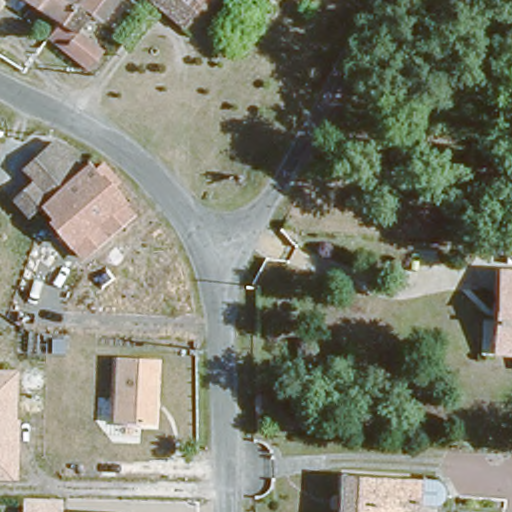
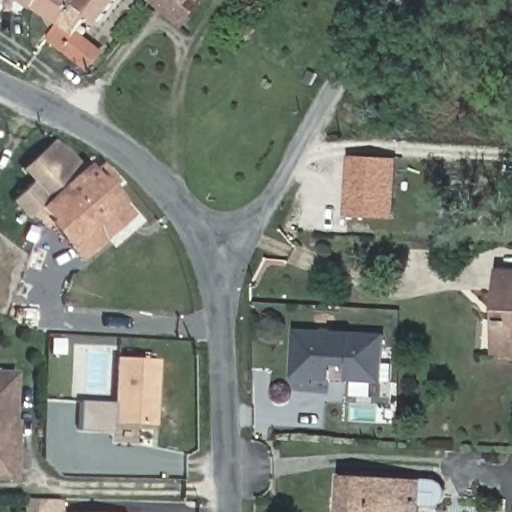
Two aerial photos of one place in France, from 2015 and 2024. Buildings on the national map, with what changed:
unchanged [(0,3),(0,0),(2,0),(0,3)]
unchanged [(37,0),(76,0),(78,1),(67,19),(66,21),(57,15),(37,0)]
unchanged [(102,20),(93,13),(78,32),(105,54),(93,71),(53,42),(66,21),(67,19),(78,1),(76,0),(115,0),(102,20)]
unchanged [(164,9),(154,0),(170,0),(164,9)]
unchanged [(187,28),(164,9),(170,0),(202,0),(187,28)]
unchanged [(31,214),(15,195),(20,189),(31,177),(21,165),(20,164),(33,151),(49,134),(71,145),(87,163),(38,209),(35,212),(31,214)]
new [(348,156),(394,160),(390,219),(344,216),(348,156)]
unchanged [(87,163),(91,158),(126,195),(71,244),(38,209),(87,163)]
unchanged [(512,273),(512,353),(499,351),(502,311),(498,310),(502,272),(512,273)]
new [(381,382),(347,381),(347,367),(329,366),(328,381),(290,379),(293,329),(385,334),(381,382)]
unchanged [(159,425),(111,423),(116,355),(162,359),(159,425)]
unchanged [(21,419),(18,480),(0,479),(0,369),(18,370),(16,419),(21,419)]
unchanged [(420,500),(395,499),(393,512),(341,512),(342,508),(349,509),(351,496),(342,495),(345,471),(422,479),(420,500)]
new [(58,502),(58,512),(23,512),(23,502),(31,502),(58,502)]

